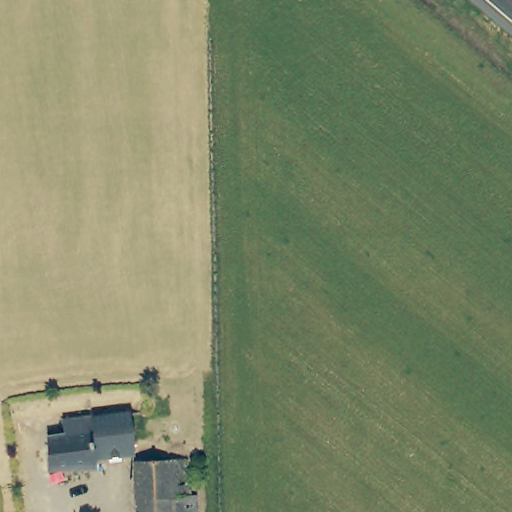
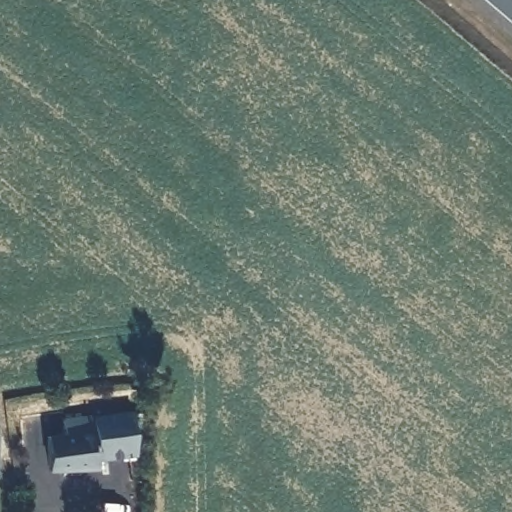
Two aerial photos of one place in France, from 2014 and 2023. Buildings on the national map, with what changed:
unchanged [(101,456),(98,415),(135,411),(137,452),(101,456)]
unchanged [(51,421),(98,415),(101,456),(101,464),(53,473),(51,421)]
demolished [(205,493),(206,512),(146,512),(142,462),(195,457),(197,494),(205,493)]

